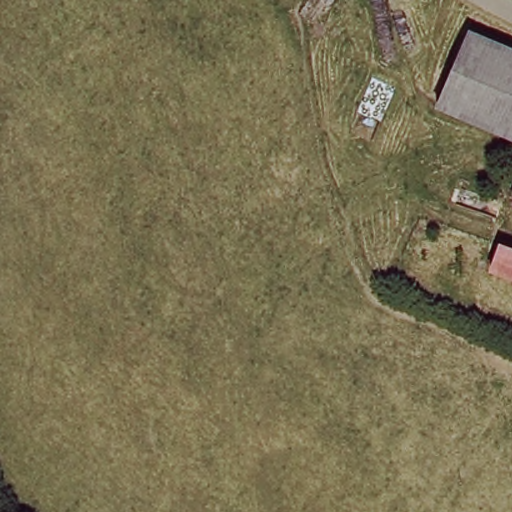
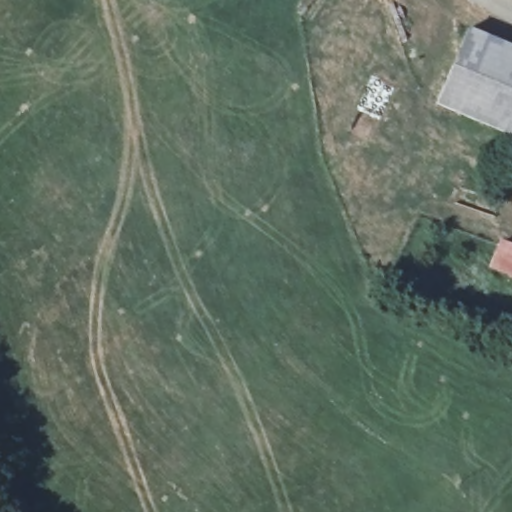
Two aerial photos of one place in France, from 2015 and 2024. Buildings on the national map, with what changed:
unchanged [(437,108),(470,26),(512,44),(512,139),(437,108)]
unchanged [(498,241),(512,247),(512,283),(487,273),(498,241)]

